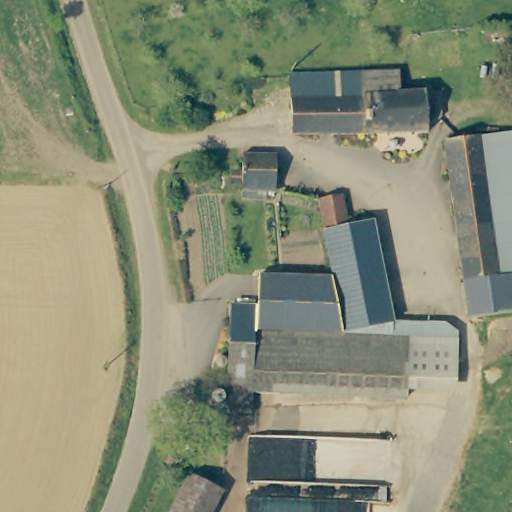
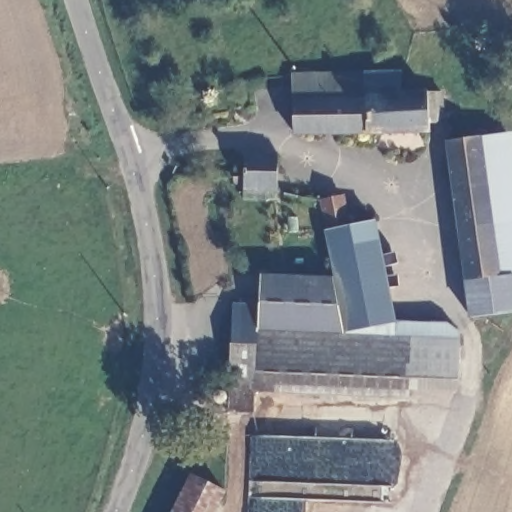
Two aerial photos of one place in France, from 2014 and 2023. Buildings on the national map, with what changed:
unchanged [(436,118),(430,122),(423,123),(424,132),(288,134),(286,74),(394,73),(396,93),(421,91),(435,91),(436,118)]
unchanged [(493,204),(488,204),(493,252),(471,258),(459,260),(440,121),(489,114),(502,203),(493,204)]
unchanged [(237,189),(237,184),(227,184),(227,170),(238,169),(238,154),(272,155),(271,191),(237,189)]
unchanged [(389,313),(425,316),(424,324),(444,324),(453,332),(452,379),(338,376),(248,372),(249,331),(279,333),(340,334),(329,274),(320,229),(315,200),(334,198),(340,227),(369,224),(389,313)]
unchanged [(459,260),(471,258),(493,252),(488,204),(493,204),(502,203),(507,203),(512,221),(512,223),(506,224),(509,252),(512,252),(512,275),(510,276),(498,278),(499,296),(489,297),(464,299),(459,260)]
unchanged [(340,334),(279,333),(249,331),(248,372),(246,413),(222,412),(228,305),(252,304),(253,274),(329,274),(340,334)]
unchanged [(190,474),(224,491),(214,512),(171,512),(190,474)]

